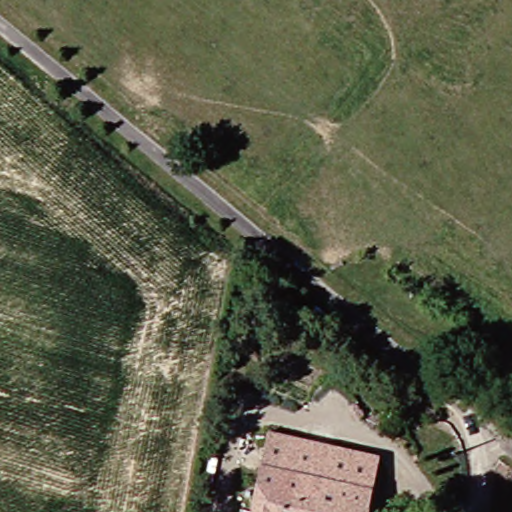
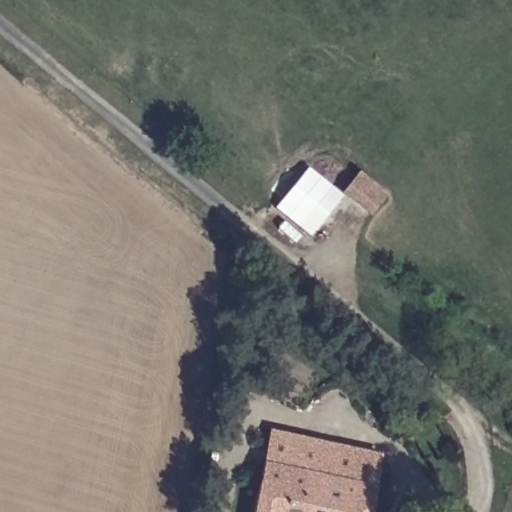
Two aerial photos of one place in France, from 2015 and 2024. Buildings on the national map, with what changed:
new [(276,209),(307,170),(340,194),(358,173),(387,195),(369,217),(344,197),(310,237),(276,209)]
unchanged [(369,512),(258,512),(276,428),(384,453),(369,512)]

